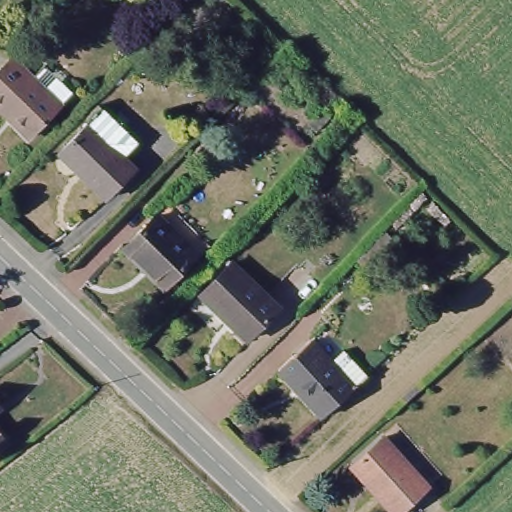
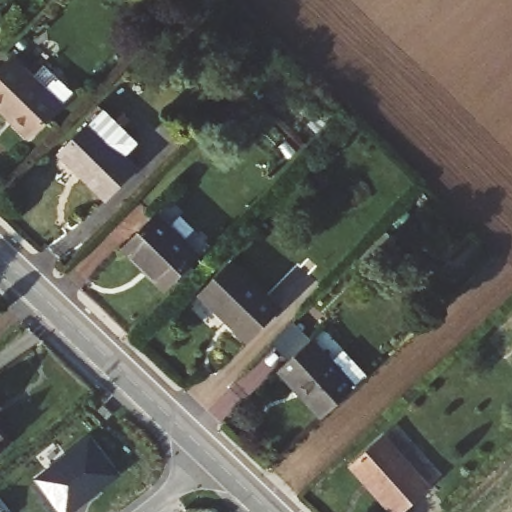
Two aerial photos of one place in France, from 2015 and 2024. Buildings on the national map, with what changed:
unchanged [(11,59),(31,78),(44,65),(72,92),(29,137),(0,109),(0,70),(11,59)]
unchanged [(123,156),(136,169),(106,199),(59,152),(89,120),(86,119),(98,106),(103,110),(137,142),(123,156)]
unchanged [(154,216),(166,228),(168,226),(194,251),(185,260),(188,265),(176,277),(172,273),(163,283),(143,263),(141,265),(123,248),(154,216)]
unchanged [(386,232),(392,239),(363,268),(356,262),(386,232)]
unchanged [(231,258),(279,303),(248,336),(199,290),(231,258)]
unchanged [(317,418),(273,370),(306,341),(325,362),(339,350),(363,376),(317,418)]
unchanged [(3,402),(0,405),(0,399),(3,402)]
unchanged [(11,438),(0,447),(0,423),(11,438)]
new [(121,475),(75,512),(59,512),(33,480),(89,435),(121,475)]
unchanged [(428,487),(400,512),(392,512),(351,466),(383,438),(428,487)]

